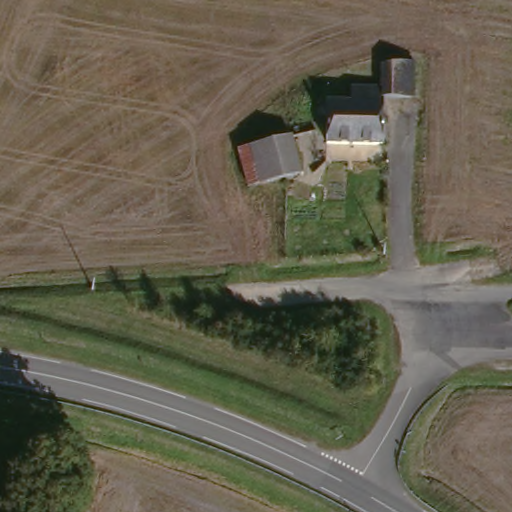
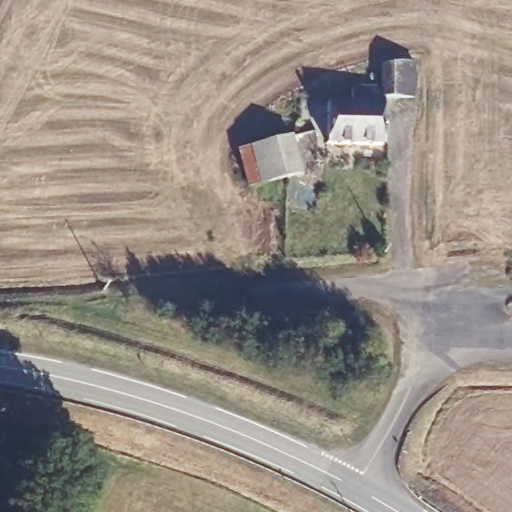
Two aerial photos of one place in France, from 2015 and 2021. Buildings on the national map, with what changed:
unchanged [(330,104),(352,104),(353,86),(383,86),(384,61),(419,59),(419,95),(384,96),(384,142),(329,143),(330,104)]
unchanged [(241,155),(291,136),(302,166),(252,185),(241,155)]

